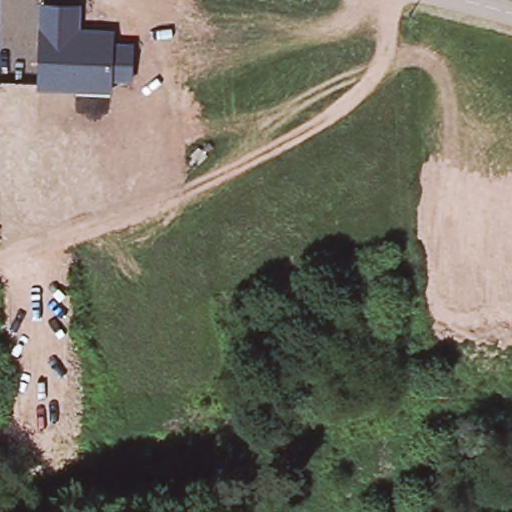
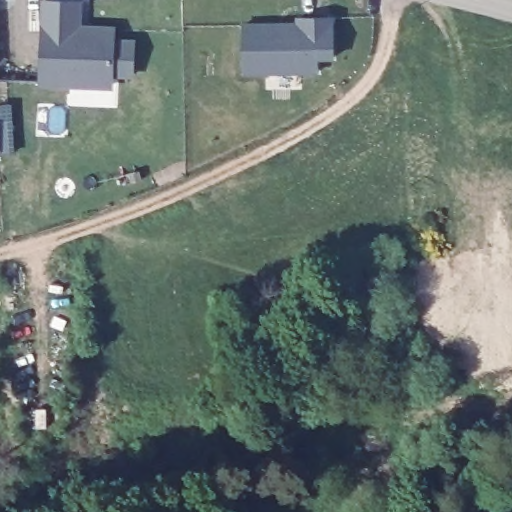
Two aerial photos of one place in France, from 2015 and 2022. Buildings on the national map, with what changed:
unchanged [(82,0),(82,24),(117,26),(115,38),(136,40),(135,77),(114,75),(113,90),(40,86),(43,1),(69,0),(82,0)]
new [(273,23),(273,25),(295,25),(295,16),(330,15),(330,55),(315,55),(315,69),(241,71),(240,24),(273,23)]
new [(13,104),(15,155),(0,154),(0,104),(13,104)]

